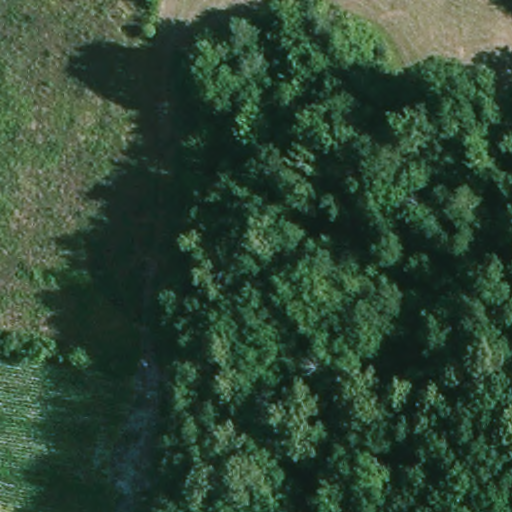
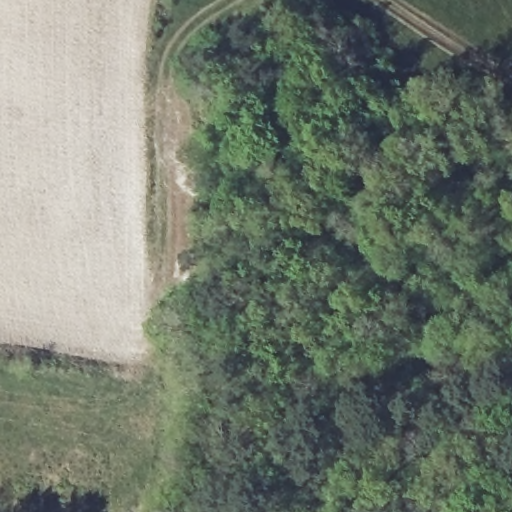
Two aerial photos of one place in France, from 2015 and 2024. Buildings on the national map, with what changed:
[]

